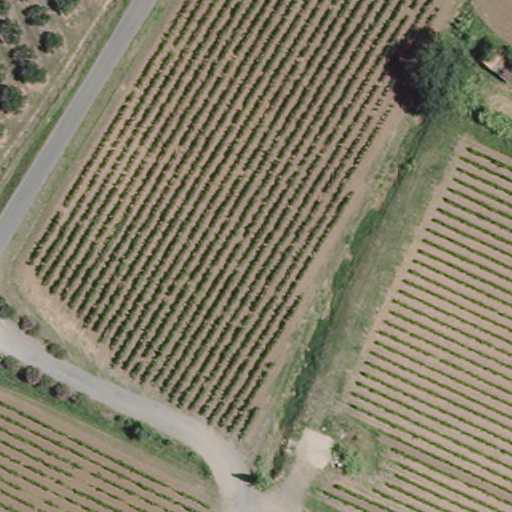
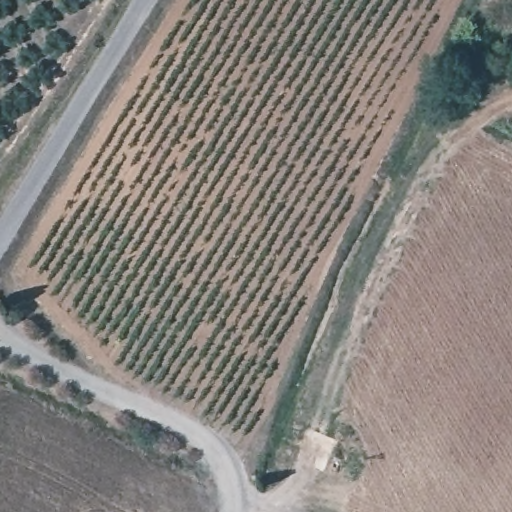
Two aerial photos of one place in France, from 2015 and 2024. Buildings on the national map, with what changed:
unchanged [(495,50),(512,63),(512,79),(505,88),(480,68),(495,50)]

